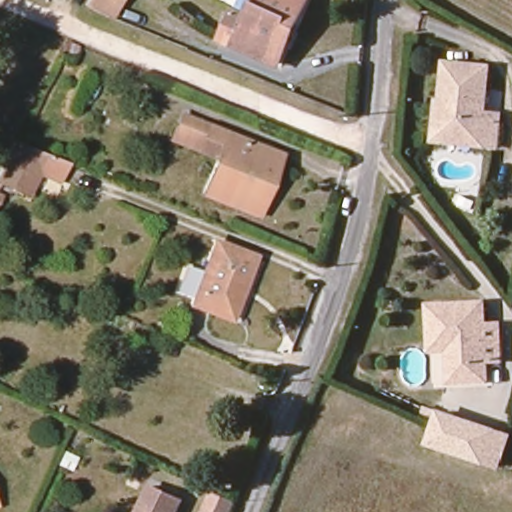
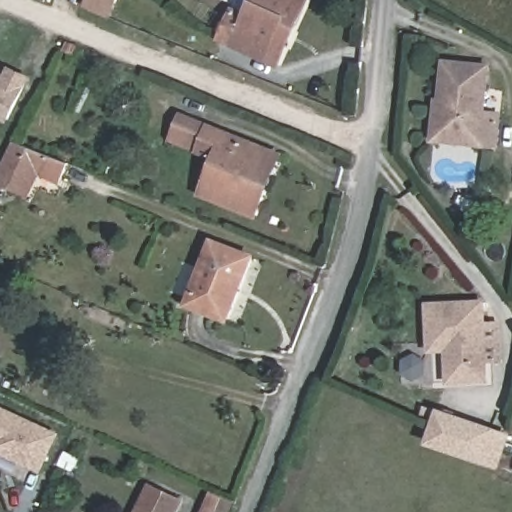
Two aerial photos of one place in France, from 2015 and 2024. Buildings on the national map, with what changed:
unchanged [(110,16),(89,7),(92,0),(117,0),(110,16)]
unchanged [(222,39),(232,16),(245,21),(254,0),(302,0),(292,25),(283,23),(271,58),(222,39)]
new [(0,118),(0,73),(5,76),(10,67),(32,78),(10,123),(0,118)]
unchanged [(485,72),(480,113),(496,115),(493,147),(477,145),(477,142),(435,138),(441,75),(441,69),(485,72)]
unchanged [(167,142),(179,114),(207,125),(206,130),(195,156),(167,142)]
unchanged [(260,210),(211,194),(223,159),(200,151),(206,130),(267,149),(280,152),(265,194),(260,210)]
unchanged [(51,159),(30,201),(0,189),(0,184),(19,146),(51,159)]
unchanged [(215,242),(256,260),(229,323),(189,306),(215,242)]
unchanged [(427,350),(426,347),(426,340),(425,312),(425,305),(480,304),(481,325),(495,325),(496,360),(481,360),(481,381),(446,382),(445,350),(439,350),(427,350)]
new [(60,434),(41,474),(0,454),(0,405),(60,434)]
unchanged [(498,468),(424,445),(435,408),(510,433),(498,468)]
unchanged [(180,504),(176,512),(138,512),(150,489),(180,504)]
unchanged [(211,491),(235,497),(229,512),(202,512),(205,506),(211,491)]

